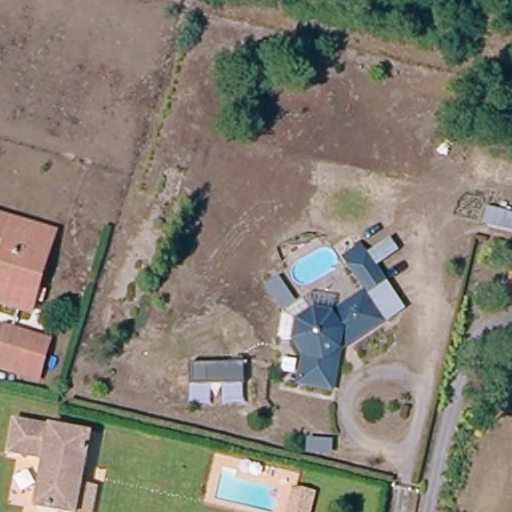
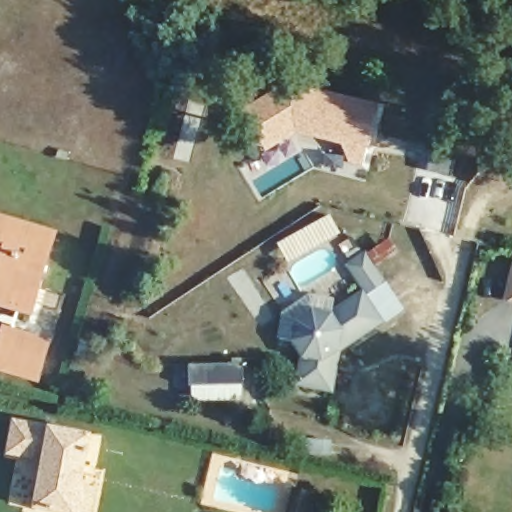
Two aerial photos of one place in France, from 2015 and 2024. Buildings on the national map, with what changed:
new [(292,81),(380,105),(374,134),(362,168),(347,164),(341,146),(298,136),(259,156),(236,108),(292,81)]
new [(330,214),(341,235),(288,265),(276,243),(330,214)]
unchanged [(0,258),(0,219),(57,233),(48,270),(0,258)]
unchanged [(388,325),(347,350),(336,395),(297,390),(298,383),(282,380),(286,357),(303,362),(296,345),(280,342),(285,316),(313,298),(338,302),(340,309),(365,294),(350,267),(345,260),(365,246),(372,256),(410,308),(388,325)]
unchanged [(1,265),(0,263),(0,258),(48,270),(37,316),(5,307),(0,306),(0,270),(1,265)]
unchanged [(512,265),(512,298),(503,296),(512,265)]
unchanged [(40,379),(0,369),(0,347),(4,332),(50,342),(40,379)]
new [(241,365),(241,386),(187,387),(187,366),(241,365)]
unchanged [(87,431),(71,512),(30,503),(40,455),(4,447),(10,415),(87,431)]
unchanged [(296,512),(301,494),(316,497),(313,512),(296,512)]

